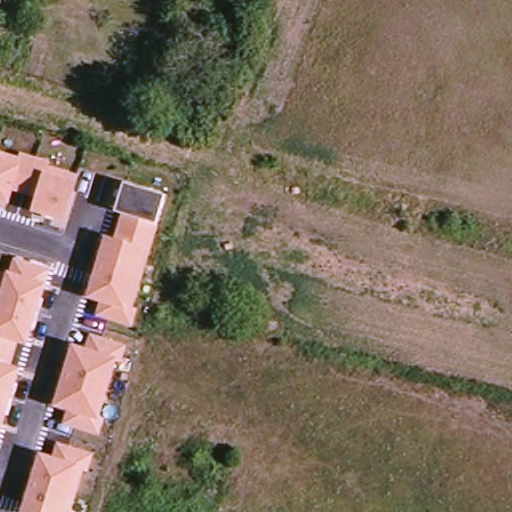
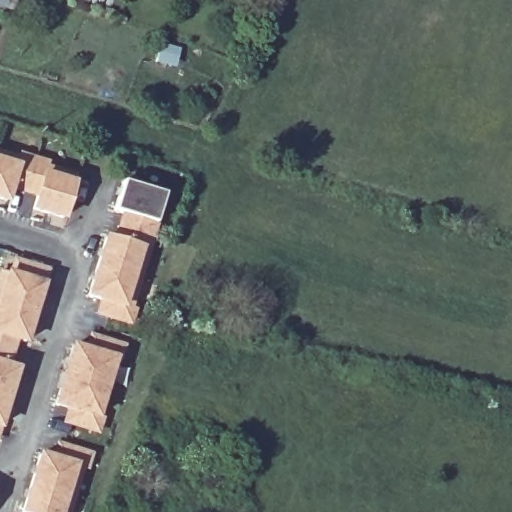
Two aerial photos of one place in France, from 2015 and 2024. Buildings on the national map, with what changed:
unchanged [(15,155),(16,149),(48,157),(47,164),(78,174),(76,180),(65,221),(30,212),(33,197),(11,190),(8,205),(0,202),(0,150),(15,155)]
unchanged [(114,237),(121,211),(114,210),(121,180),(163,190),(155,219),(160,220),(152,248),(144,245),(127,300),(137,305),(131,325),(94,315),(99,298),(85,293),(101,234),(114,237)]
unchanged [(45,281),(26,341),(17,339),(10,363),(20,365),(0,428),(0,431),(0,268),(8,270),(11,255),(50,265),(45,281)]
unchanged [(84,345),(87,331),(121,342),(117,355),(99,417),(103,420),(100,435),(60,422),(65,407),(50,403),(70,340),(84,345)]
unchanged [(36,449),(51,453),(55,440),(92,450),(85,473),(79,472),(69,512),(18,512),(36,449)]

